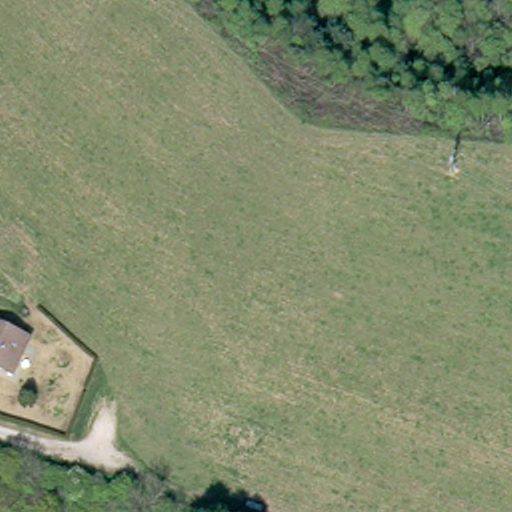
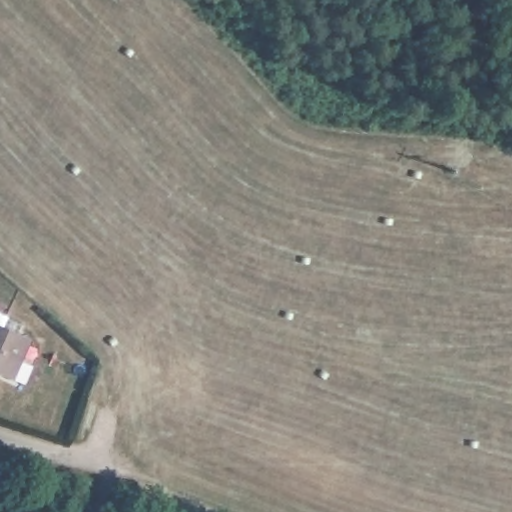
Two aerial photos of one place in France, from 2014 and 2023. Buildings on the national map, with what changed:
unchanged [(12,374),(0,368),(0,324),(29,337),(12,374)]

